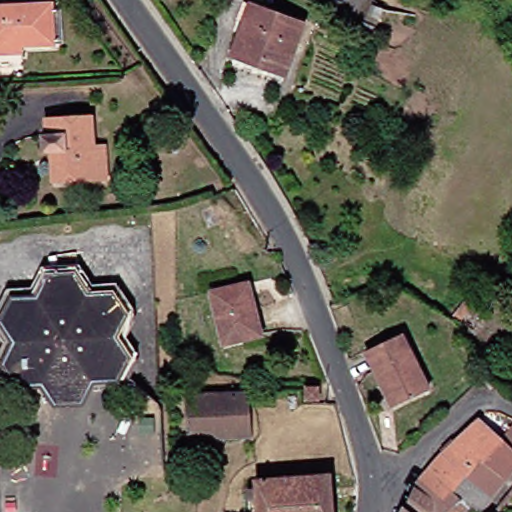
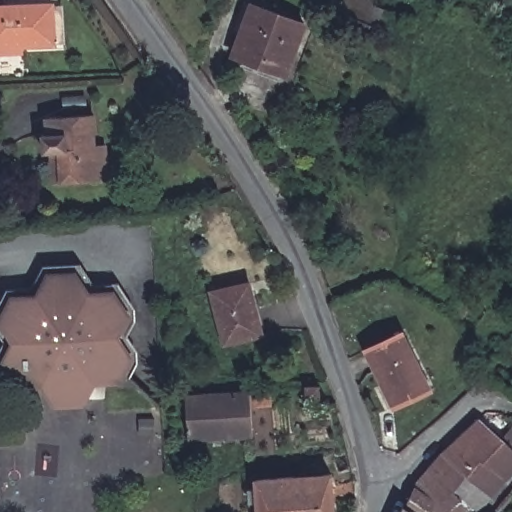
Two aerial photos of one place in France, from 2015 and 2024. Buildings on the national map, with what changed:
unchanged [(349,9),(353,0),(379,0),(374,17),(349,9)]
unchanged [(0,8),(50,4),(53,44),(18,45),(19,54),(0,55),(0,8)]
unchanged [(281,80),(229,56),(253,4),(304,28),(281,80)]
unchanged [(47,155),(39,155),(38,139),(41,139),(40,129),(40,121),(56,120),(88,119),(90,150),(101,151),(104,184),(93,184),(56,187),(49,187),(47,155)]
unchanged [(26,291),(38,269),(72,267),(89,288),(116,285),(137,314),(128,338),(141,355),(129,378),(118,379),(128,356),(115,339),(124,315),(108,295),(83,297),(68,278),(43,280),(33,300),(8,304),(0,326),(0,300),(3,294),(26,291)]
unchanged [(13,347),(0,328),(0,326),(8,304),(33,300),(43,280),(68,278),(83,297),(108,295),(124,315),(115,339),(128,356),(118,379),(94,381),(84,403),(59,405),(44,385),(17,388),(3,368),(13,347)]
unchanged [(260,333),(223,343),(210,295),(246,284),(260,333)]
unchanged [(503,318),(486,304),(492,297),(509,310),(503,318)]
unchanged [(0,344),(0,328),(13,347),(3,368),(17,388),(5,389),(0,381),(0,350),(1,347),(0,344)]
unchanged [(429,389),(394,409),(362,356),(397,335),(429,389)]
unchanged [(319,396),(306,397),(304,386),(318,386),(319,396)]
unchanged [(181,401),(246,396),(261,395),(263,408),(246,409),(249,440),(243,441),(184,444),(181,401)]
unchanged [(466,482),(464,480),(451,495),(442,504),(419,483),(440,454),(476,423),(498,443),(512,424),(512,471),(503,483),(488,499),(466,482)]
unchanged [(329,512),(254,512),(252,483),(326,478),(329,512)]
unchanged [(442,504),(451,495),(458,503),(447,512),(402,512),(412,489),(419,483),(442,504)]

